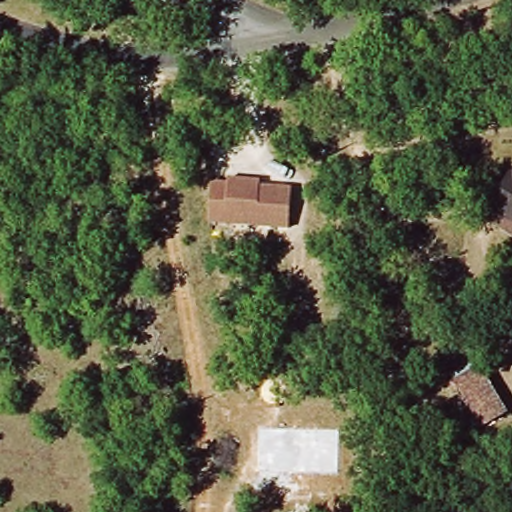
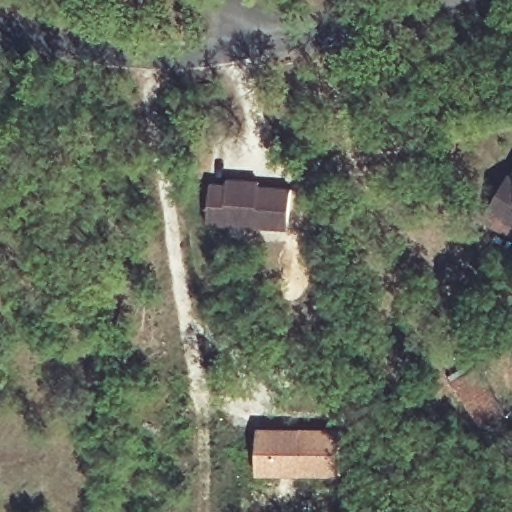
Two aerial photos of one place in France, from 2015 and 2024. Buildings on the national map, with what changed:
unchanged [(502,178),(512,182),(512,222),(487,210),(502,178)]
unchanged [(248,189),(282,191),(280,232),(216,229),(217,187),(237,187),(237,184),(248,185),(248,189)]
unchanged [(453,382),(487,367),(511,415),(482,427),(453,382)]
new [(258,427),(339,429),(338,476),(257,473),(258,427)]

